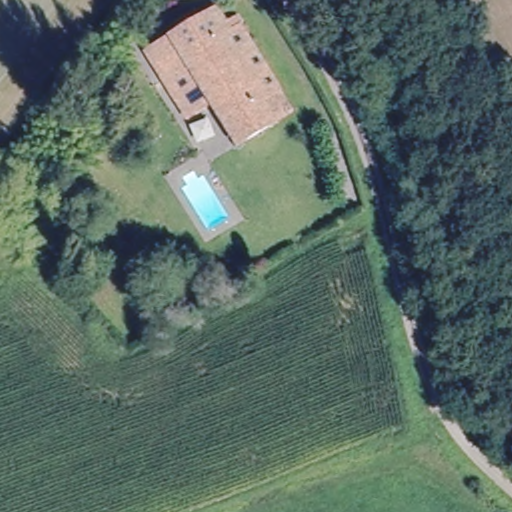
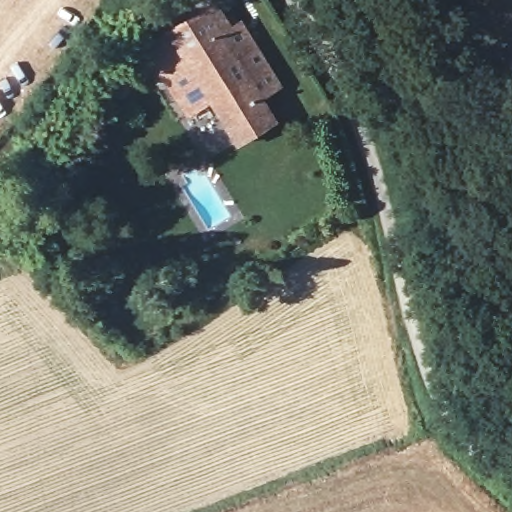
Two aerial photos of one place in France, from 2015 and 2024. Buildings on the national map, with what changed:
unchanged [(270,120),(233,142),(207,101),(184,115),(142,48),(212,5),(227,27),(235,22),(247,41),(228,53),(257,99),(270,120)]
unchanged [(247,41),(276,87),(257,99),(228,53),(247,41)]

